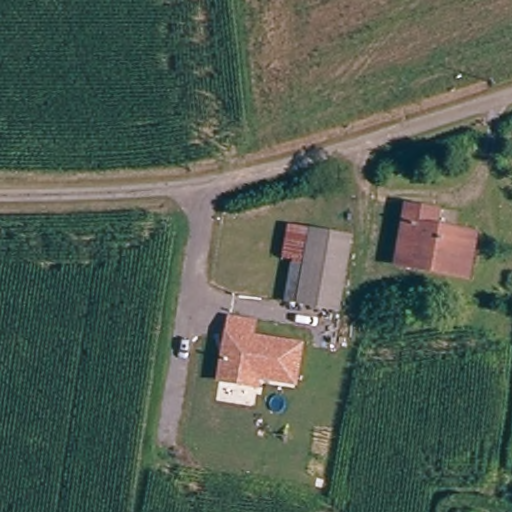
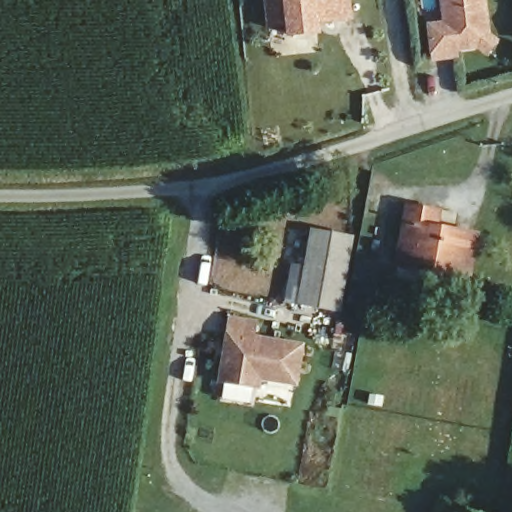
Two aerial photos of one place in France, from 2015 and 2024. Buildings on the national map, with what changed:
new [(322,27),(323,33),(287,37),(285,29),(267,30),(264,0),(351,0),(354,21),(322,27)]
new [(490,57),(479,50),(459,54),(460,58),(433,62),(428,25),(445,23),(442,0),(487,0),(492,36),(499,40),(490,57)]
unchanged [(394,260),(411,194),(442,203),(436,223),(480,236),(468,281),(394,260)]
unchanged [(313,225),(355,237),(335,309),(293,297),(279,293),(289,257),(303,261),(313,225)]
unchanged [(258,319),(255,335),(304,341),(297,387),(260,381),(259,387),(217,381),(228,314),(258,319)]

